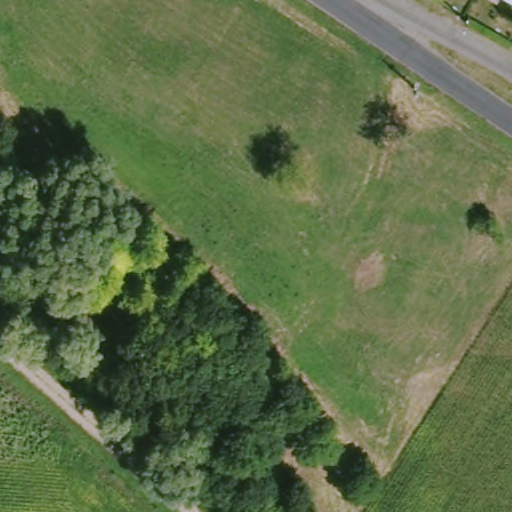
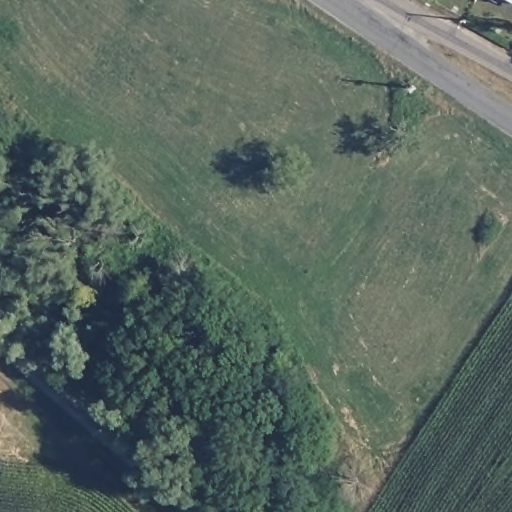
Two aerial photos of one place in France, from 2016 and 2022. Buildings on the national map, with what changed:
unchanged [(502,8),(487,0),(507,0),(502,8)]
unchanged [(512,1),(511,0),(512,0),(512,1)]

